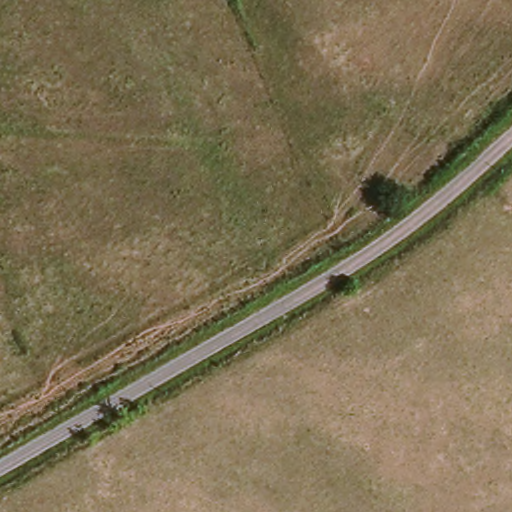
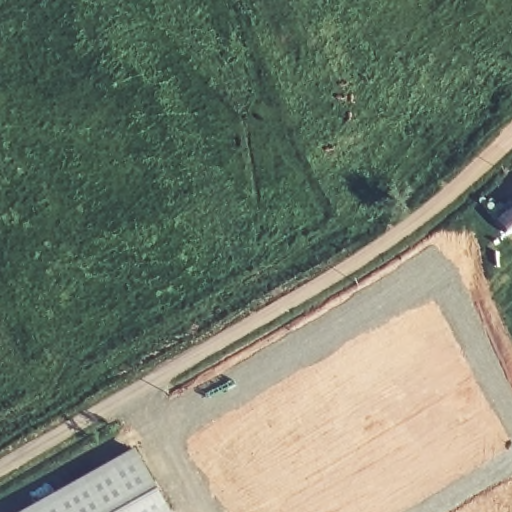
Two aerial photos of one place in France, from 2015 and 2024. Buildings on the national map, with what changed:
new [(134,450),(171,512),(22,512),(134,450)]

